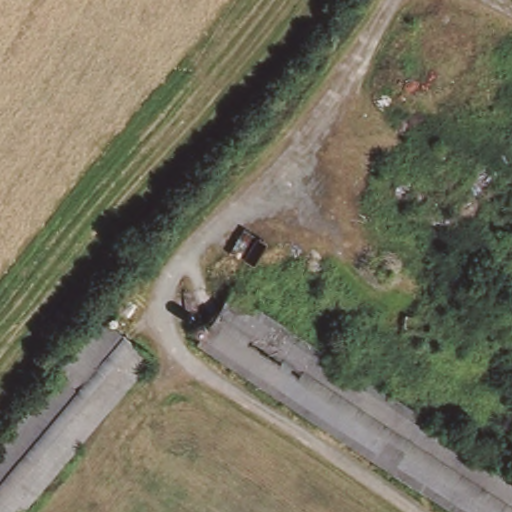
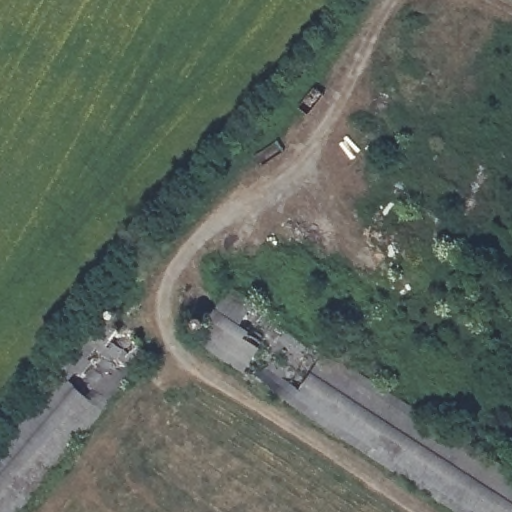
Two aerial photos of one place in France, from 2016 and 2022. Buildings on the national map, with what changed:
unchanged [(229,289),(512,473),(512,512),(461,512),(195,340),(229,289)]
unchanged [(0,512),(0,439),(104,316),(151,356),(19,512),(0,512)]

